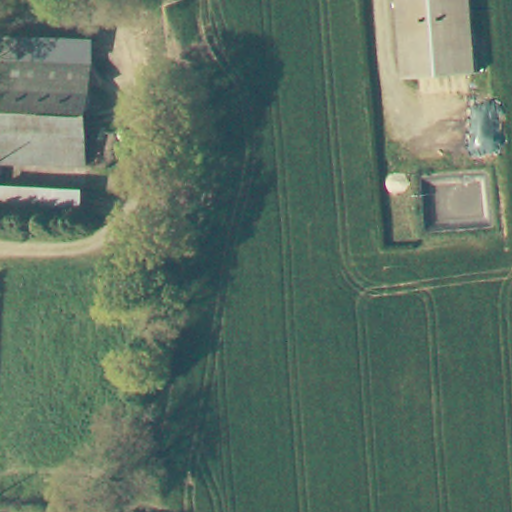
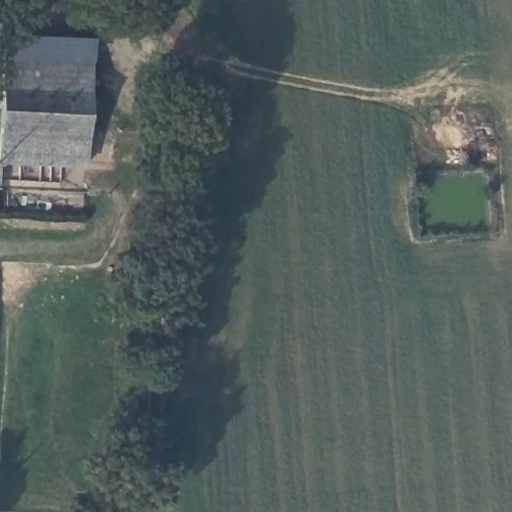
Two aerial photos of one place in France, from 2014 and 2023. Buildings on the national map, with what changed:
demolished [(476,73),(407,79),(400,0),(472,0),(478,73),(476,73)]
unchanged [(90,38),(89,59),(3,56),(4,37),(90,38)]
unchanged [(89,59),(89,88),(1,85),(3,56),(89,59)]
unchanged [(85,163),(0,159),(0,116),(1,85),(89,88),(85,163)]

